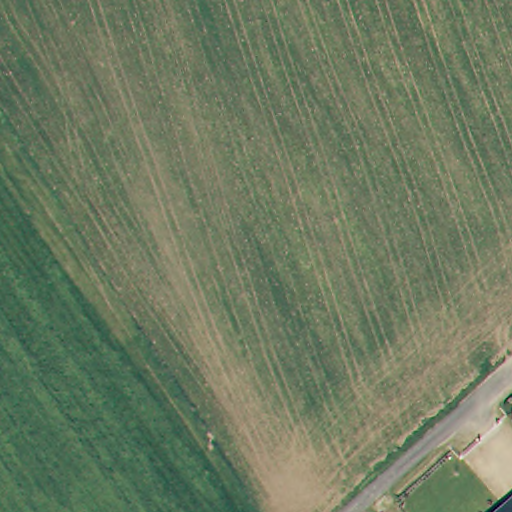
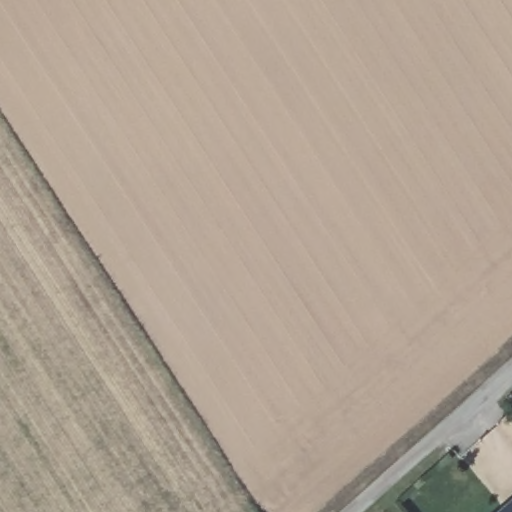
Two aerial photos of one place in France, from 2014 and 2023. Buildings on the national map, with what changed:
unchanged [(501,512),(512,503),(512,510),(509,512),(501,512)]
unchanged [(512,512),(509,512),(512,510),(512,512)]

